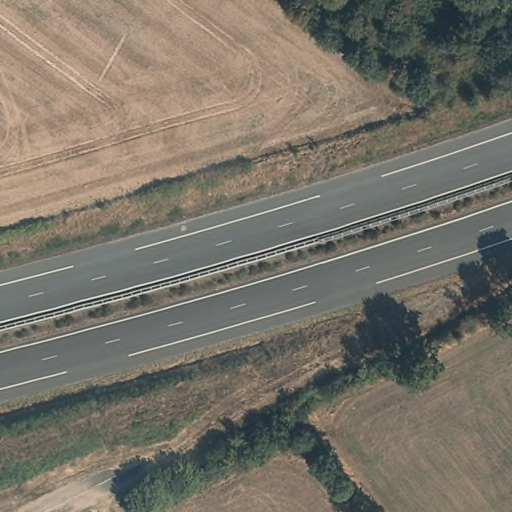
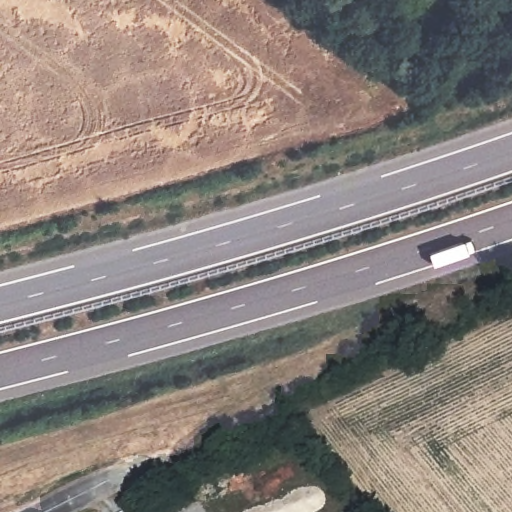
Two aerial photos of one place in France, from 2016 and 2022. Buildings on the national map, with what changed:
[]

